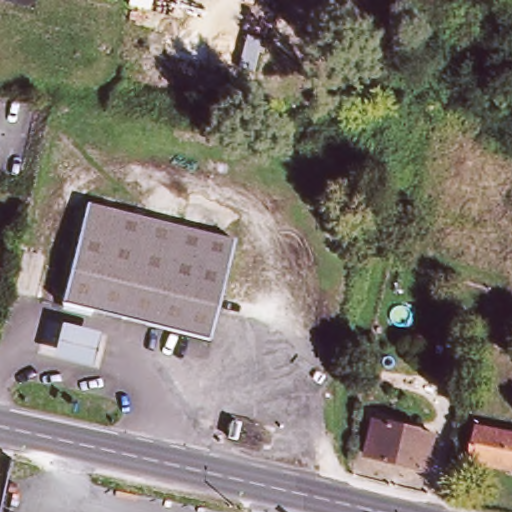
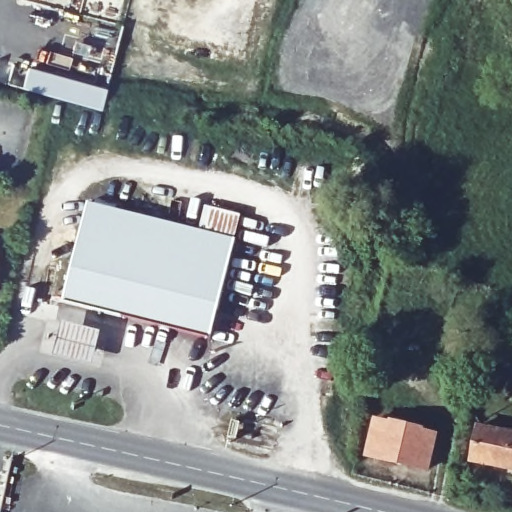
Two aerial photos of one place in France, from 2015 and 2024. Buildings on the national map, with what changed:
new [(108,90),(104,111),(26,90),(32,67),(108,90)]
unchanged [(236,242),(207,342),(62,301),(91,204),(236,242)]
unchanged [(56,359),(63,324),(99,335),(91,368),(56,359)]
unchanged [(457,387),(440,383),(452,335),(468,339),(457,387)]
unchanged [(424,470),(366,456),(374,423),(432,436),(424,470)]
unchanged [(512,439),(512,473),(470,466),(476,433),(512,439)]

